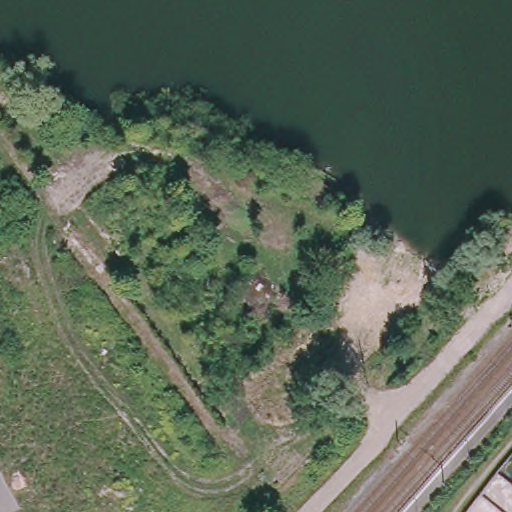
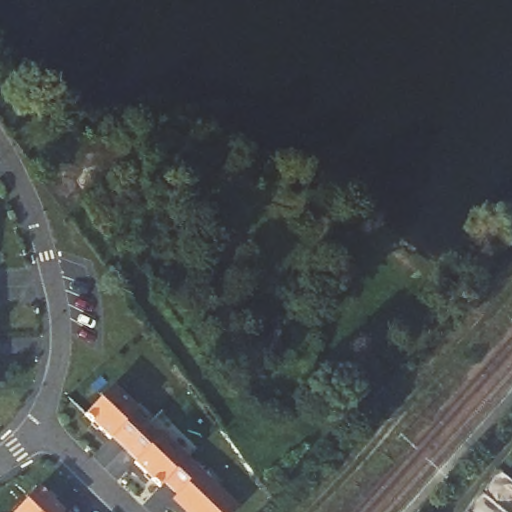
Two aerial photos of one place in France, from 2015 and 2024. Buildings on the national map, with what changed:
unchanged [(322,185),(311,205),(287,200),(292,180),(322,185)]
new [(194,512),(87,403),(112,383),(246,512),(194,512)]
new [(27,512),(12,496),(31,478),(67,512),(27,512)]

